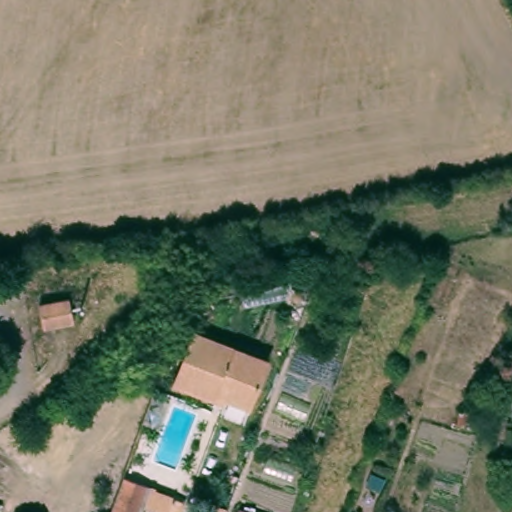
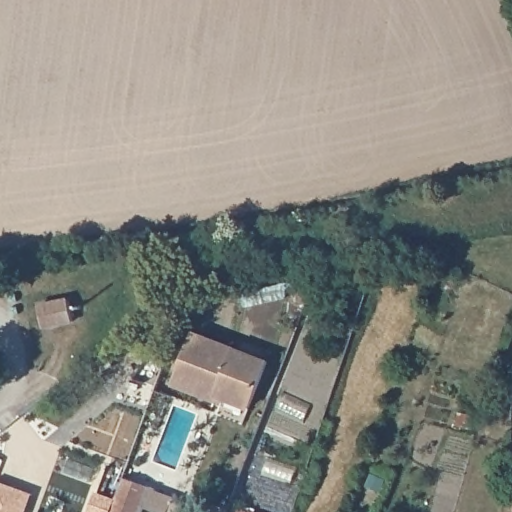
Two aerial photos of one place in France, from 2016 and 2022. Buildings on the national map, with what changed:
unchanged [(76,302),(81,324),(50,330),(46,307),(76,302)]
unchanged [(190,332),(268,362),(248,410),(225,401),(222,406),(170,386),(190,332)]
unchanged [(146,475),(133,512),(131,512),(112,505),(125,468),(146,475)]
new [(33,494),(26,512),(0,512),(0,481),(33,494)]
unchanged [(262,512),(238,512),(240,505),(262,512)]

